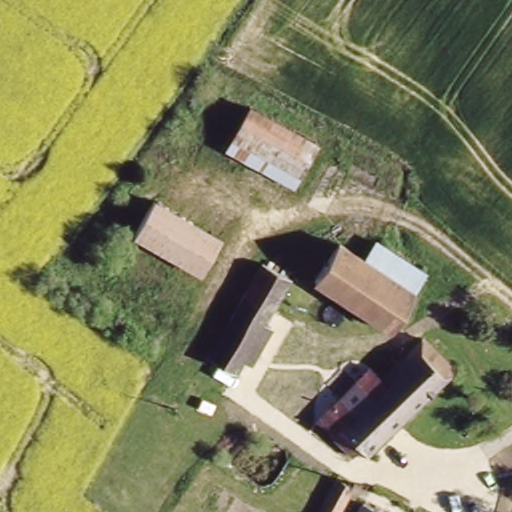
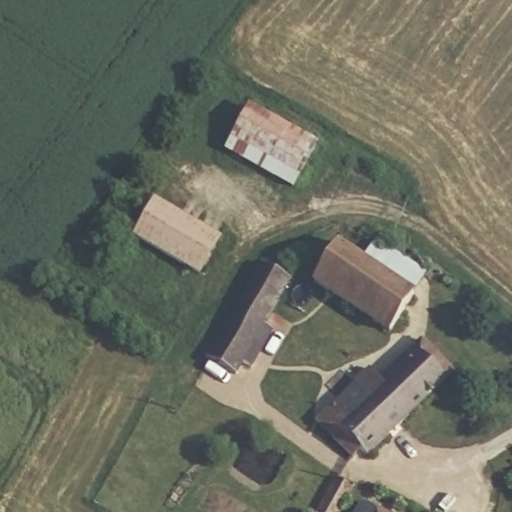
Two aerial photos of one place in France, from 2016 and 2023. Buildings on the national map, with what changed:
unchanged [(223,150),(245,111),(316,145),(293,190),(223,150)]
unchanged [(220,237),(197,279),(133,243),(157,201),(220,237)]
unchanged [(313,249),(350,271),(363,253),(385,266),(415,282),(390,328),(300,273),(313,249)]
unchanged [(289,282),(265,322),(273,329),(255,365),(243,361),(234,374),(205,356),(258,264),(289,282)]
unchanged [(325,410),(370,373),(377,382),(425,344),(452,380),(365,451),(360,454),(325,410)]
unchanged [(339,512),(316,512),(335,480),(350,491),(339,512)]
unchanged [(358,512),(351,512),(353,509),(358,512)]

